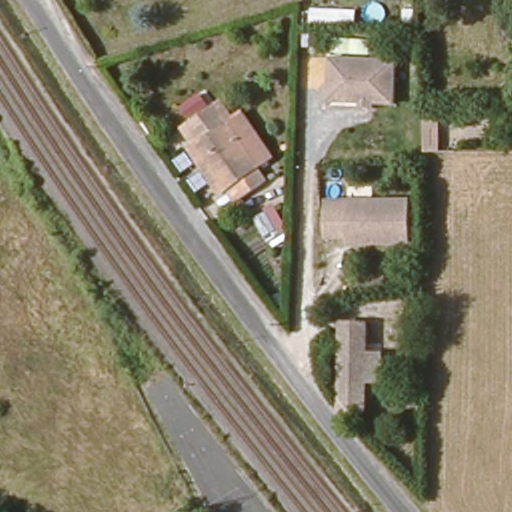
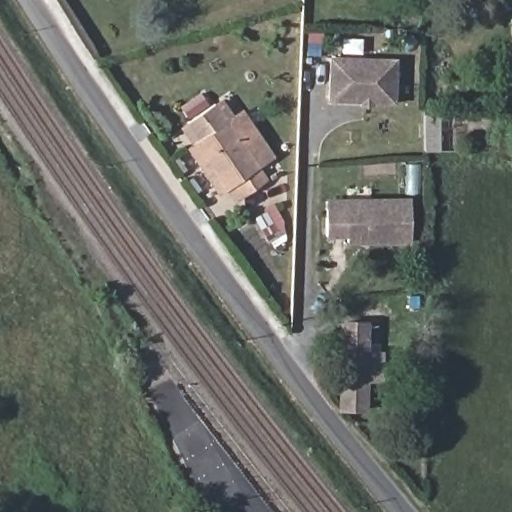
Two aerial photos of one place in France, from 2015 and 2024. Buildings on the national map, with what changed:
unchanged [(332,58),(348,58),(398,58),(397,102),(347,102),(332,102),(332,58)]
unchanged [(226,189),(219,193),(189,150),(196,145),(182,125),(190,120),(217,101),(229,119),(241,110),(270,156),(258,164),(267,178),(243,193),(233,200),(226,189)]
unchanged [(426,114),(442,114),(442,150),(426,150),(426,114)]
unchanged [(411,240),(348,240),(348,234),(344,234),(328,234),(328,206),(328,200),(345,200),(348,200),(411,200),(411,240)]
unchanged [(366,322),(365,350),(381,350),(381,381),(365,381),(364,408),(344,408),(341,405),(342,342),(342,322),(366,322)]

